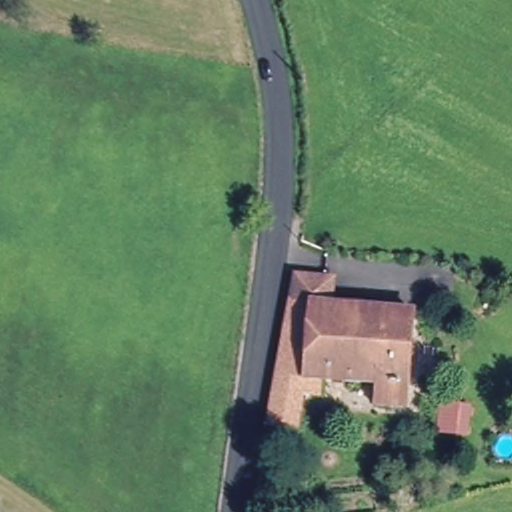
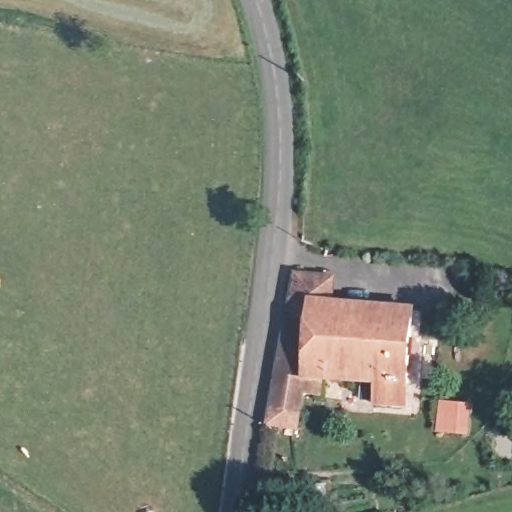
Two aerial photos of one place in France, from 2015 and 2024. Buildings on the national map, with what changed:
unchanged [(271,382),(282,330),(297,277),(331,281),(328,307),(413,315),(405,410),(373,407),(373,389),(317,384),(312,406),(295,404),(292,435),(262,432),(268,402),(271,382)]

